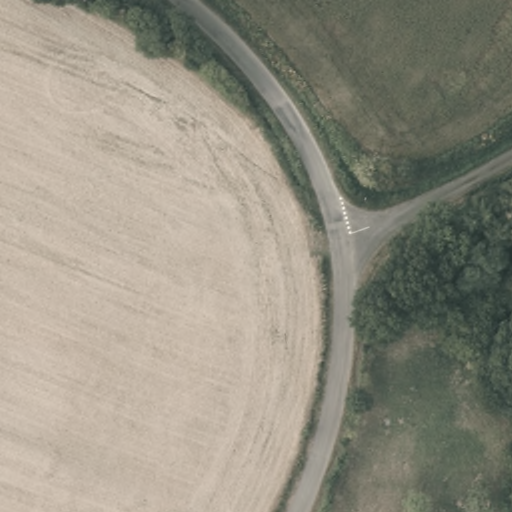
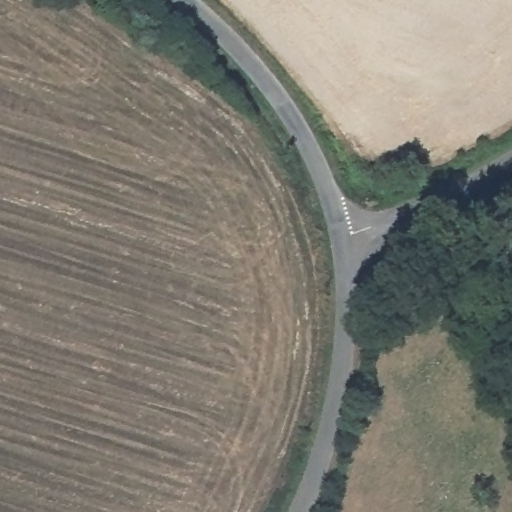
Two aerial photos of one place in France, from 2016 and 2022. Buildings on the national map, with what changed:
[]

